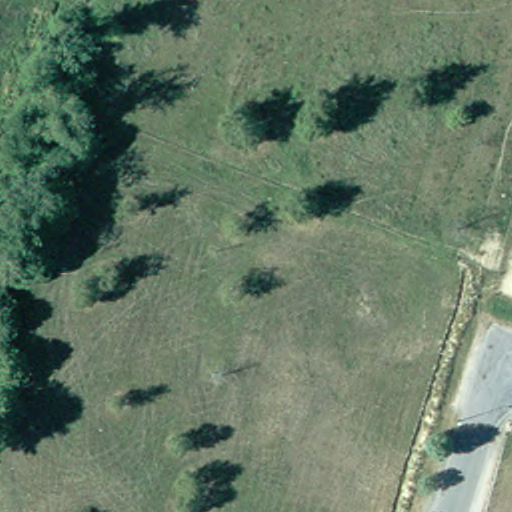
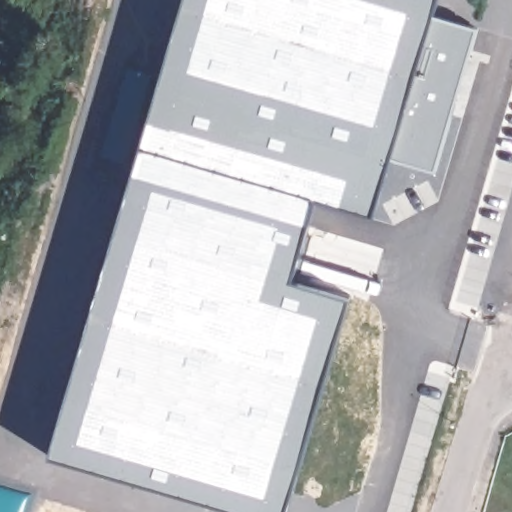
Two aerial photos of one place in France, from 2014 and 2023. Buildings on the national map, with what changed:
new [(443,0),(438,17),(482,30),(439,176),(395,164),(377,222),(321,205),(297,285),(355,301),(293,512),(227,512),(54,462),(189,0),(443,0)]

